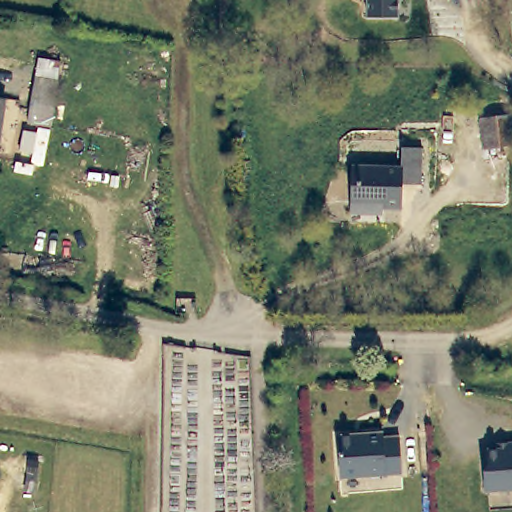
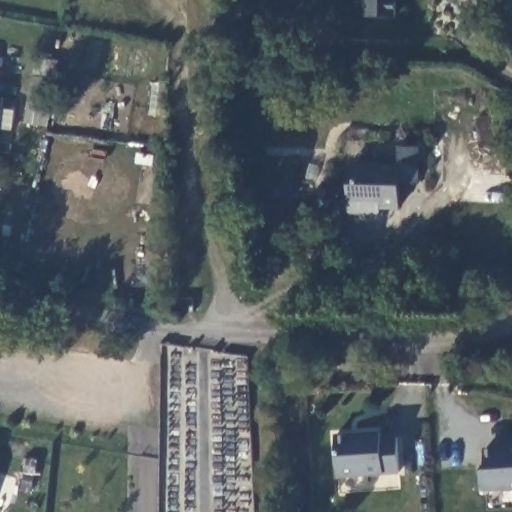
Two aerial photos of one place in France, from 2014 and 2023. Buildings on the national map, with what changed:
unchanged [(399,14),(369,13),(370,0),(400,0),(399,14)]
unchanged [(29,121),(31,101),(34,73),(36,55),(58,58),(56,75),(52,104),(50,124),(29,121)]
unchanged [(0,151),(0,95),(11,96),(11,99),(5,152),(0,151)]
unchanged [(512,120),(512,150),(488,153),(485,123),(512,120)]
unchanged [(360,166),(405,169),(405,150),(425,150),(425,186),(405,186),(405,209),(384,209),(384,216),(354,215),(355,166),(360,166)]
unchanged [(385,432),(385,436),(401,435),(404,470),(342,475),(339,435),(385,432)]
unchanged [(486,487),(485,468),(490,462),(489,447),(499,446),(499,440),(508,440),(512,439),(512,485),(486,487)]

